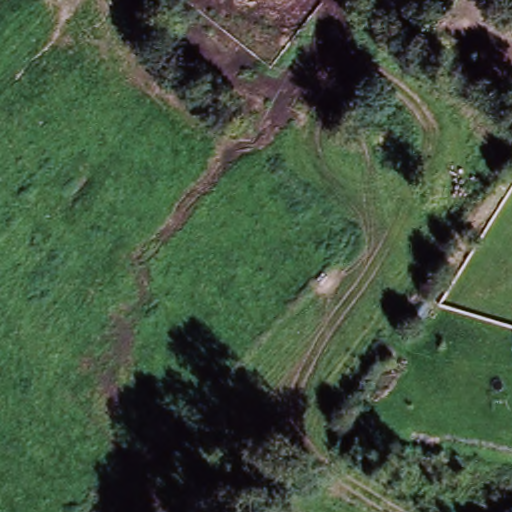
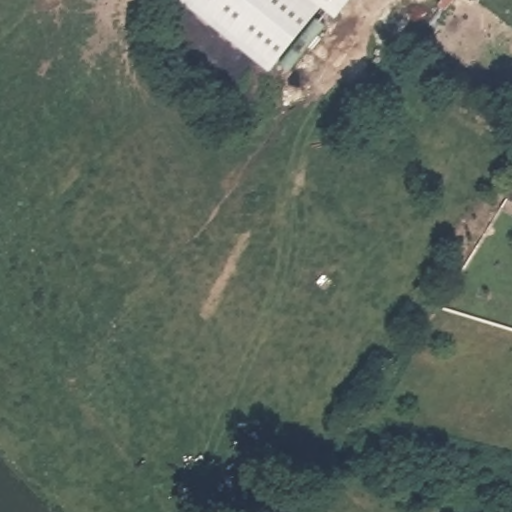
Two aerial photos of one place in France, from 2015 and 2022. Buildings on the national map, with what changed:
new [(325,7),(271,73),(181,0),(352,0),(338,17),(325,7)]
demolished [(512,448),(512,478),(441,467),(445,438),(512,448)]

